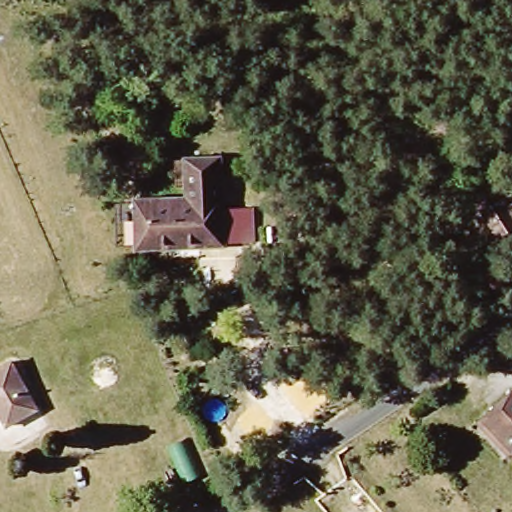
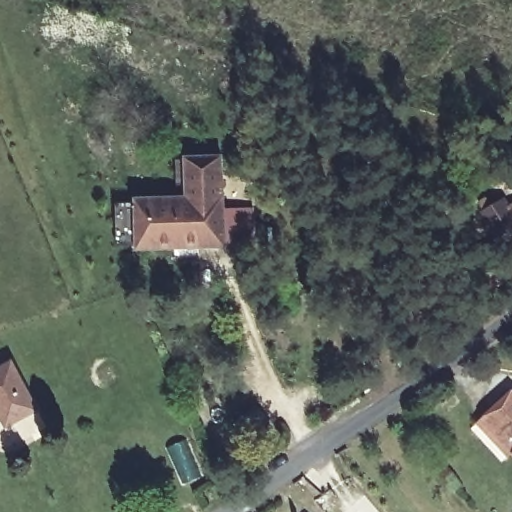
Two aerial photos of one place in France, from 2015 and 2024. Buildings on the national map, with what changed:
unchanged [(251,235),(222,237),(134,240),(132,195),(183,194),(183,175),(183,152),(219,151),(219,179),(221,208),(250,207),(251,235)]
unchanged [(505,206),(512,203),(512,228),(495,238),(475,202),(483,196),(489,205),(500,199),(505,206)]
unchanged [(448,214),(441,217),(436,208),(442,204),(448,214)]
unchanged [(20,381),(34,407),(4,421),(0,411),(0,363),(9,359),(20,381)]
unchanged [(481,415),(512,387),(512,450),(481,415)]

